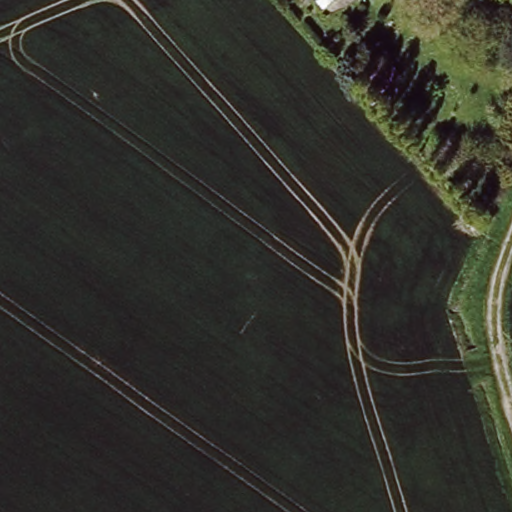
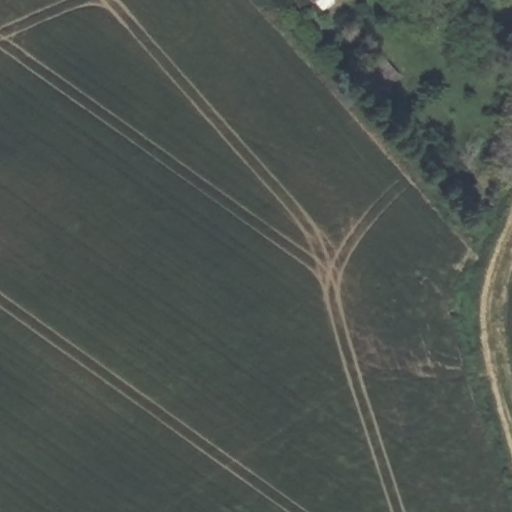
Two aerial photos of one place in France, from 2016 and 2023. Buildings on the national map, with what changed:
unchanged [(325,2),(323,0),(326,0),(325,2)]
unchanged [(367,67),(371,63),(383,52),(402,72),(390,82),(385,87),(367,67)]

